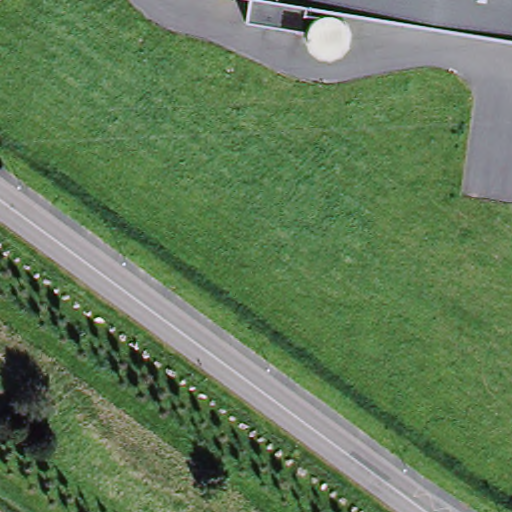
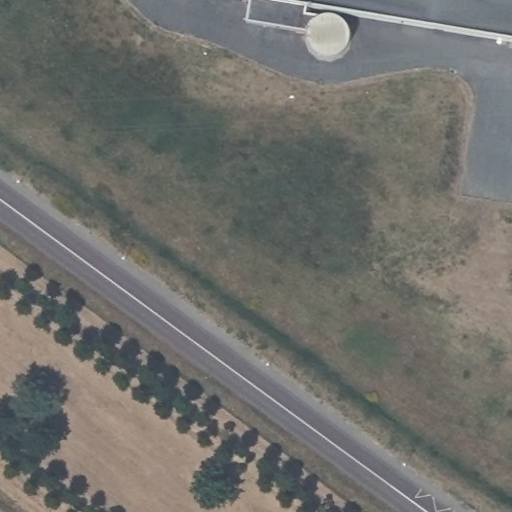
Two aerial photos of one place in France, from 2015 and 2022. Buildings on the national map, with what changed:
unchanged [(308,10),(328,12),(337,10),(349,12),(357,22),(359,36),(350,51),(334,53),(327,51),(320,45),(317,37),(316,29),(299,27),(255,19),(259,0),(512,0),(512,35),(311,2),(308,10)]

